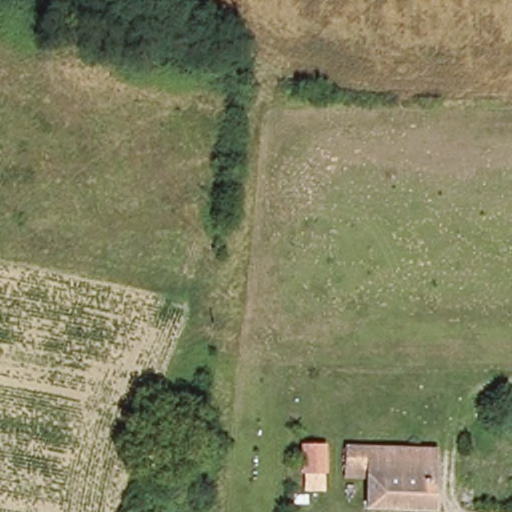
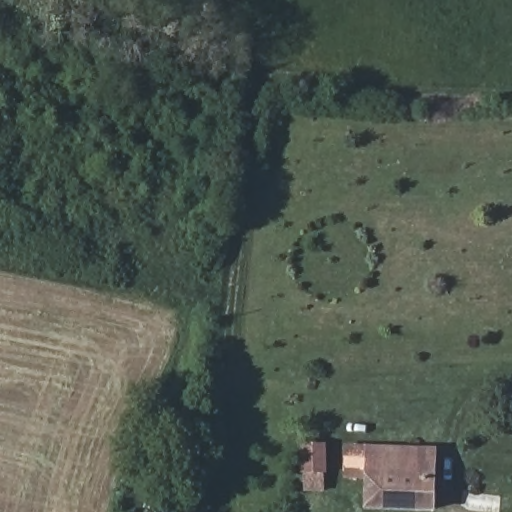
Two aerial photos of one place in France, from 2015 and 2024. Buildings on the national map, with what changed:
unchanged [(346,476),(346,447),(370,447),(440,450),(436,510),(370,507),(369,476),(346,476)]

